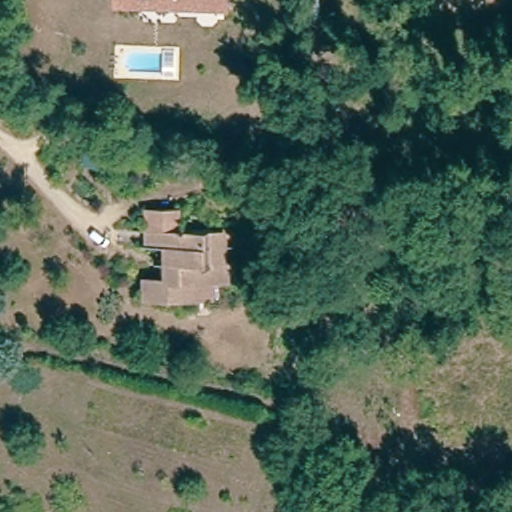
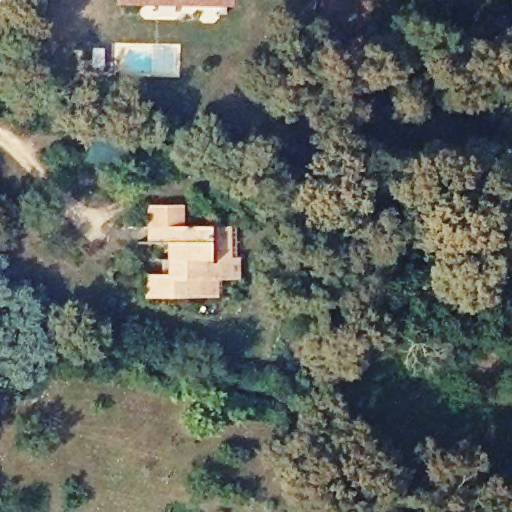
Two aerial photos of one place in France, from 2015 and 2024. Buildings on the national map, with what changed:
unchanged [(112,0),(222,0),(222,6),(184,6),(176,2),(167,7),(152,7),(144,2),(136,7),(112,8),(112,0)]
unchanged [(255,276),(240,276),(240,297),(224,298),(147,300),(146,277),(166,276),(165,240),(154,241),(153,209),(184,209),(185,227),(222,226),(245,226),(246,257),(254,257),(255,276)]

